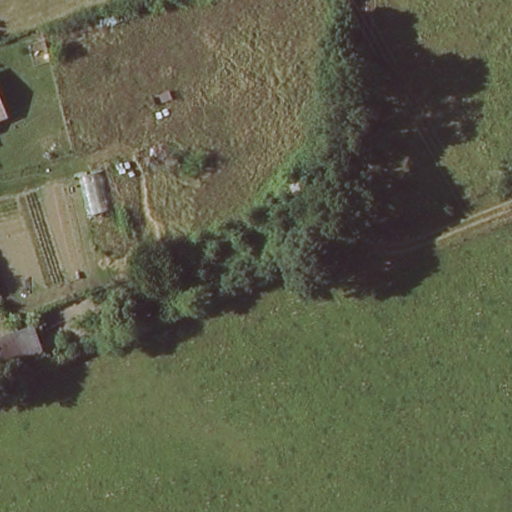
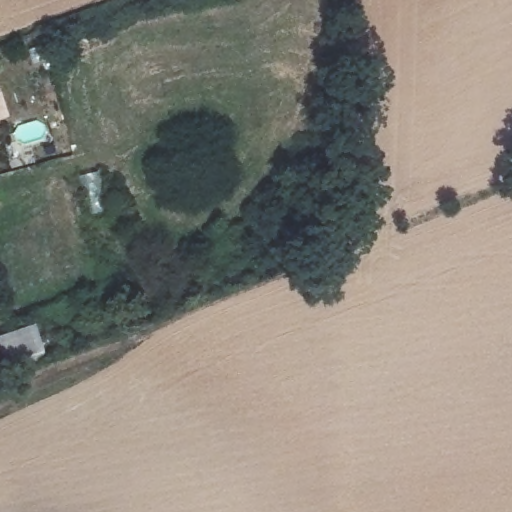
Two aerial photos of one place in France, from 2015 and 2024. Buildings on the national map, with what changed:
unchanged [(8,110),(0,113),(0,86),(8,110)]
unchanged [(115,213),(91,222),(78,184),(105,174),(115,213)]
unchanged [(9,377),(0,356),(0,345),(36,329),(49,360),(9,377)]

